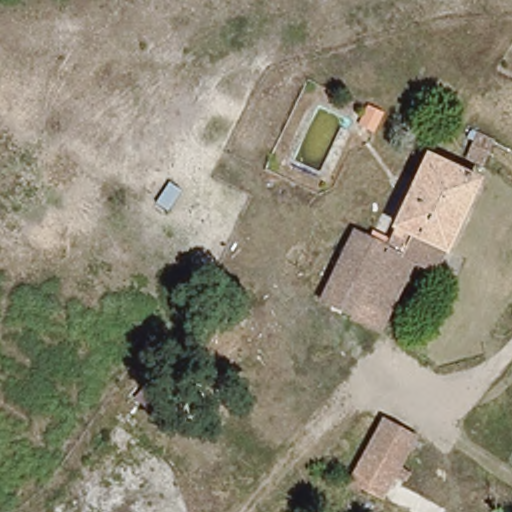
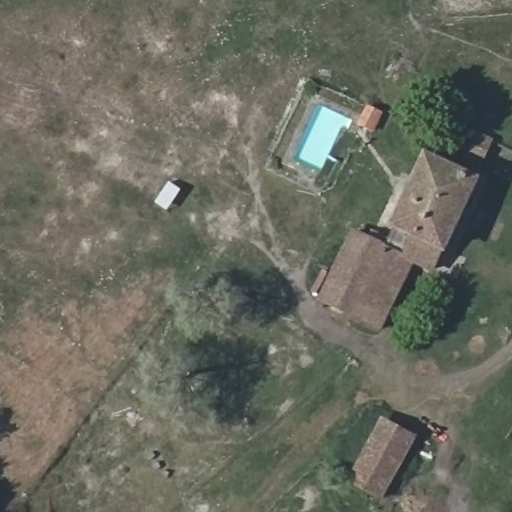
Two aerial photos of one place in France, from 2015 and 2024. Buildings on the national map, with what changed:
unchanged [(479,142),(470,162),(455,154),(464,135),(479,142)]
unchanged [(376,234),(393,242),(397,234),(435,157),(441,161),(481,182),(435,273),(413,262),(379,333),(329,308),(324,306),(359,232),(364,235),(373,240),(376,234)]
unchanged [(411,440),(382,493),(358,480),(386,427),(411,440)]

